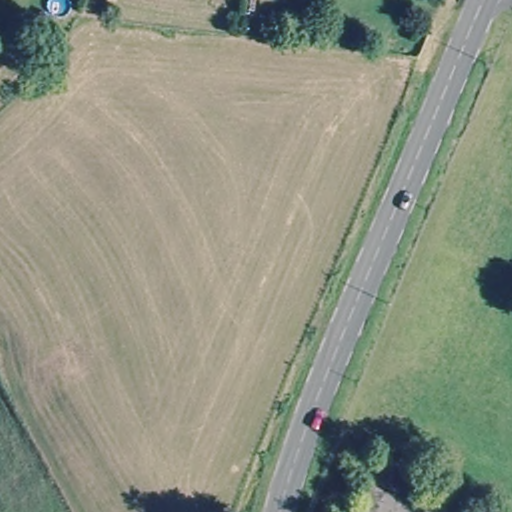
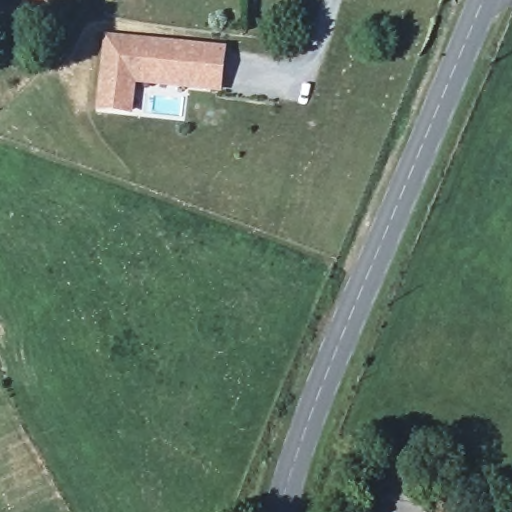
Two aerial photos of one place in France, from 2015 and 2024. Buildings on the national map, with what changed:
new [(228,49),(224,95),(137,86),(134,117),(97,114),(105,33),(228,49)]
unchanged [(424,512),(360,512),(374,460),(432,470),(424,512)]

